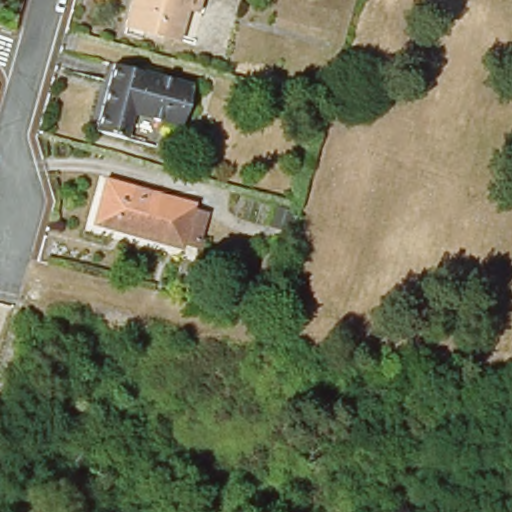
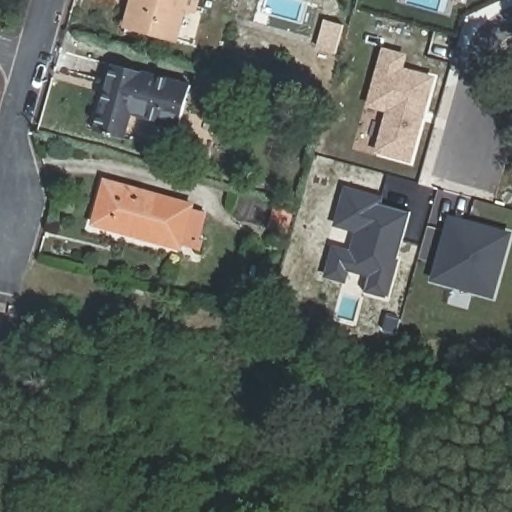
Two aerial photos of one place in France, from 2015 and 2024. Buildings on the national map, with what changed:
unchanged [(134,0),(198,0),(196,11),(184,8),(175,40),(137,29),(127,26),(134,0)]
new [(336,55),(316,49),(324,20),(345,25),(336,55)]
new [(374,154),(385,113),(366,107),(382,48),(409,54),(405,68),(437,76),(412,164),(374,154)]
unchanged [(183,125),(136,112),(129,138),(101,130),(118,65),(194,85),(183,125)]
unchanged [(196,252),(183,249),(165,243),(163,249),(93,230),(106,185),(173,205),(173,206),(193,212),(193,213),(206,217),(196,252)]
new [(354,233),(333,227),(344,186),(382,197),(381,202),(411,212),(390,297),(365,290),(369,278),(348,271),(345,282),(324,275),(333,245),(350,250),(354,233)]
unchanged [(275,206),(293,211),(286,232),(269,227),(275,206)]
new [(512,232),(512,234),(494,300),(430,282),(432,277),(449,215),(512,232)]

